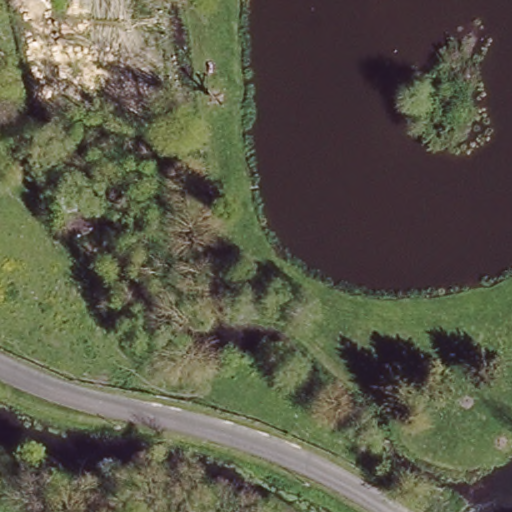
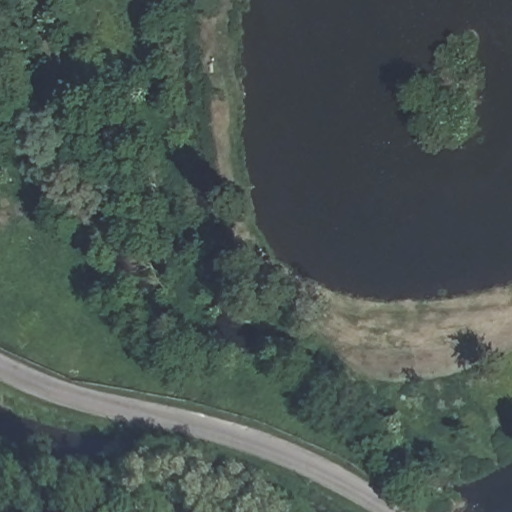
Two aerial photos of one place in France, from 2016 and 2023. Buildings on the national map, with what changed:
unchanged [(82,182),(87,221),(55,225),(47,185),(82,182)]

